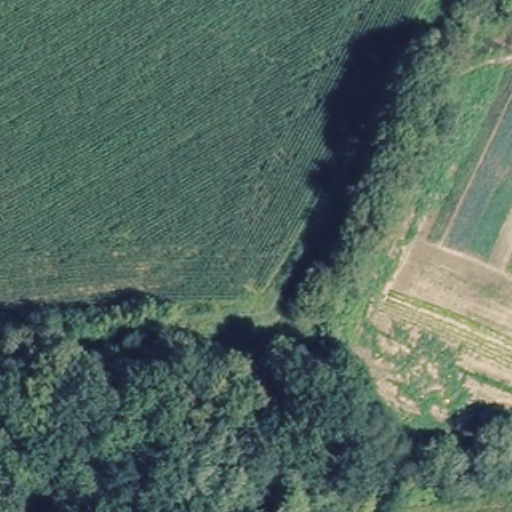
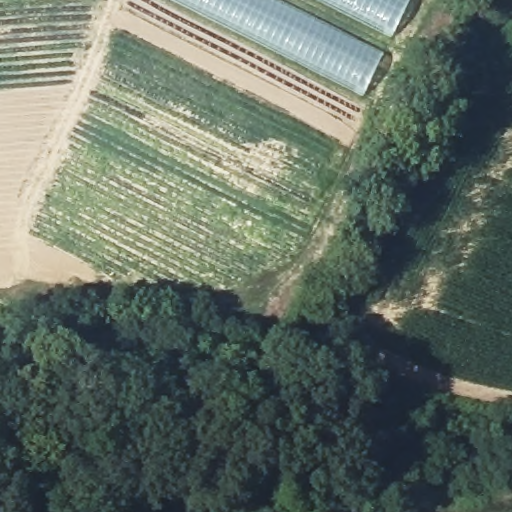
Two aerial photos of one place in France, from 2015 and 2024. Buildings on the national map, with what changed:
new [(312,16),(385,52),(363,96),(171,0),(274,0),(312,16)]
new [(392,37),(318,0),(410,0),(392,37)]

